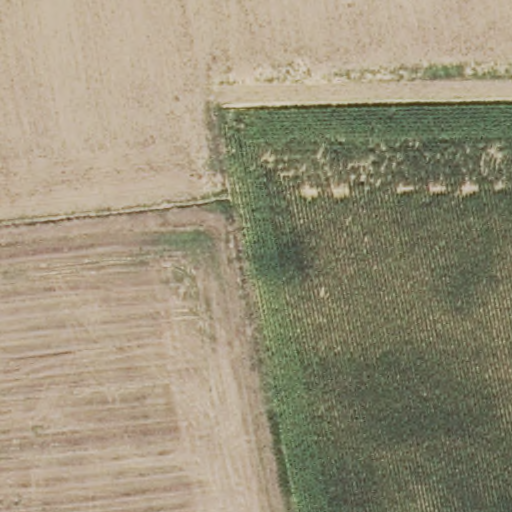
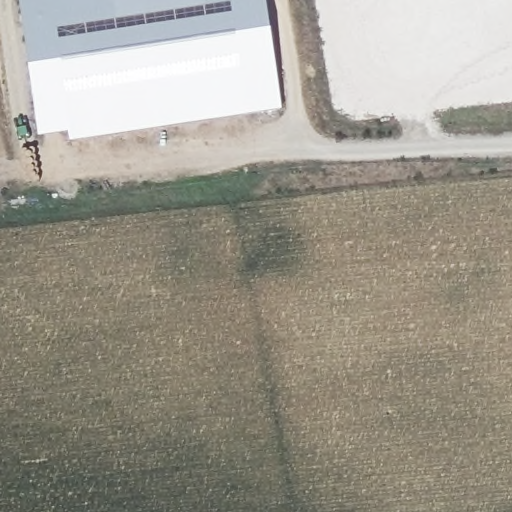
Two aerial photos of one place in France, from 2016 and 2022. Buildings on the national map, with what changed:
new [(69,140),(69,132),(37,136),(20,0),(264,0),(281,110),(69,140)]

